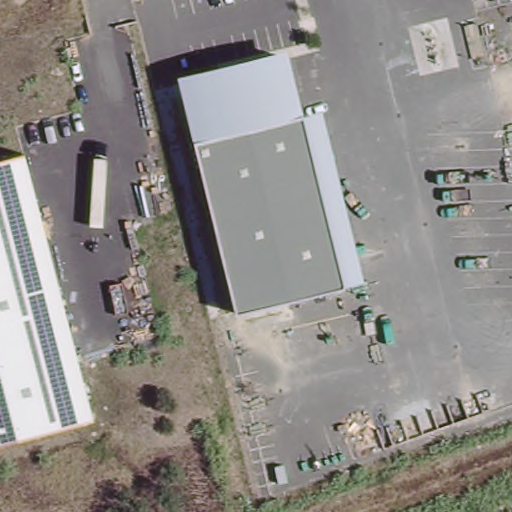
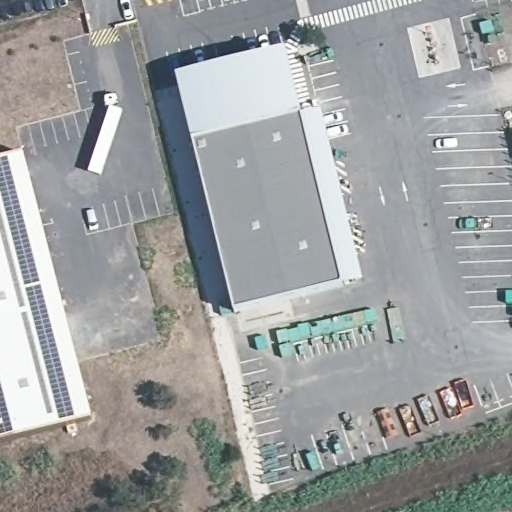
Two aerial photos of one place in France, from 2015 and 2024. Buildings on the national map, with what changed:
unchanged [(287,46),(306,113),(323,106),(366,278),(349,284),(237,313),(175,76),(287,46)]
unchanged [(27,150),(98,416),(0,440),(0,158),(27,150)]

